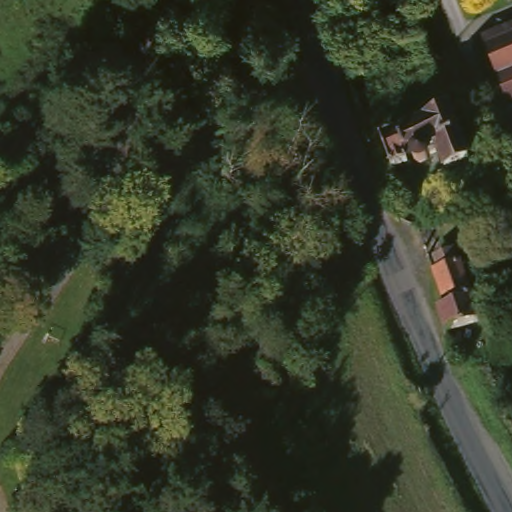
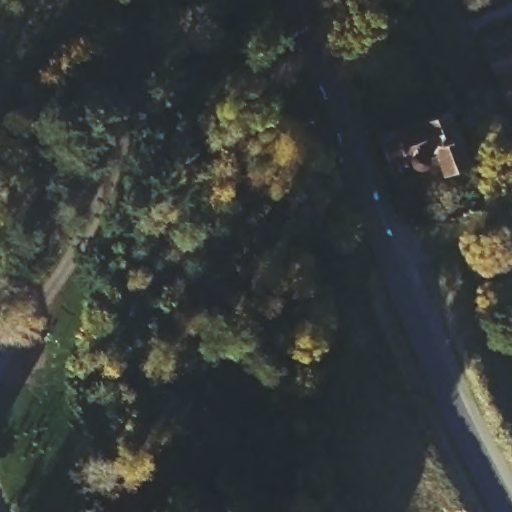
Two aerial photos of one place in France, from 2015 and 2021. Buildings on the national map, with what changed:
unchanged [(512,28),(512,84),(493,35),(512,28)]
unchanged [(284,110),(271,127),(246,106),(259,90),(284,110)]
unchanged [(468,126),(474,143),(481,159),(481,161),(456,170),(450,153),(440,156),(441,158),(440,161),(439,162),(437,164),(435,165),(434,165),(433,165),(431,165),(430,165),(428,164),(427,164),(427,162),(426,161),(425,160),(425,158),(425,157),(425,156),(425,154),(417,157),(418,161),(403,169),(392,139),(408,132),(407,130),(462,110),(468,126)]
unchanged [(459,305),(447,271),(452,269),(447,257),(464,251),(481,298),(482,298),(490,320),(457,332),(449,309),(459,305)]

